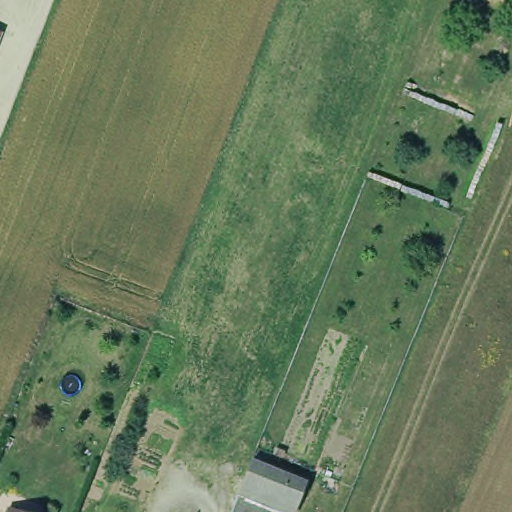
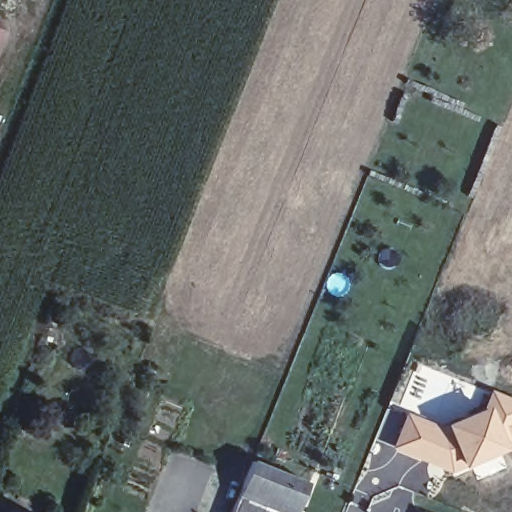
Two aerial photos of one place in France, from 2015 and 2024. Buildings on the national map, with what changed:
new [(443,427),(481,410),(490,390),(512,399),(512,449),(509,449),(467,469),(452,476),(390,451),(406,413),(443,427)]
unchanged [(291,503),(282,499),(234,481),(241,466),(245,454),(301,477),(296,489),(291,503)]
unchanged [(282,499),(277,512),(222,512),(234,481),(282,499)]
unchanged [(11,512),(9,512),(9,511),(11,512)]

